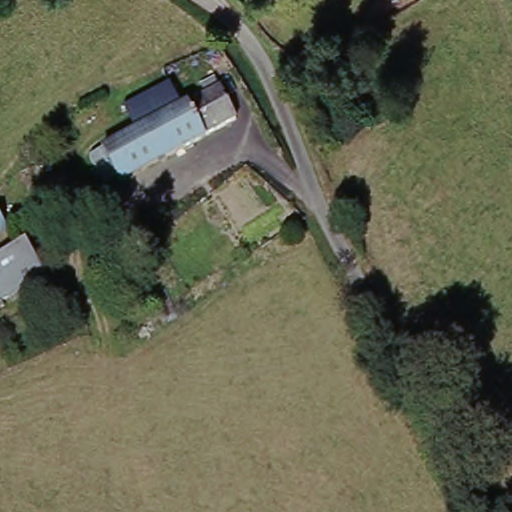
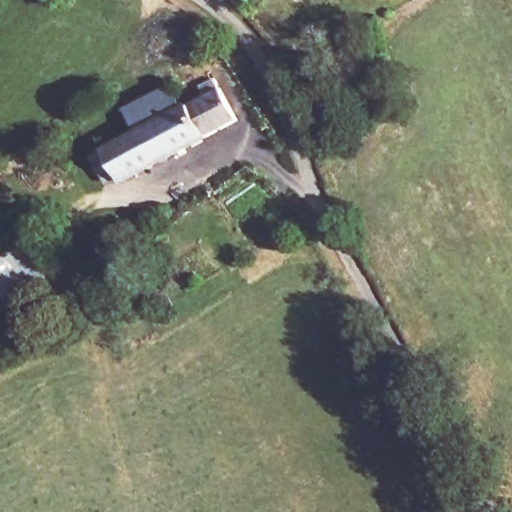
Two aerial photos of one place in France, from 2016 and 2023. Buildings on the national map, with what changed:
unchanged [(107,149),(126,139),(142,132),(186,109),(217,95),(212,86),(226,79),(231,87),(247,120),(122,182),(121,179),(106,186),(95,162),(109,155),(107,149)]
unchanged [(142,132),(128,109),(174,86),(186,109),(142,132)]
unchanged [(11,230),(1,235),(0,234),(0,198),(2,197),(17,216),(7,224),(11,230)]
unchanged [(0,253),(35,233),(57,270),(0,303),(0,253)]

